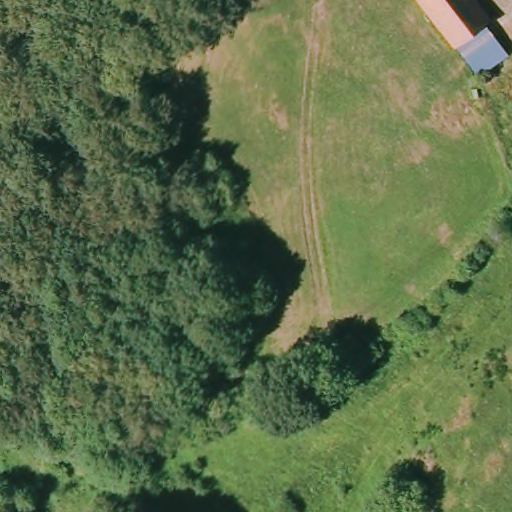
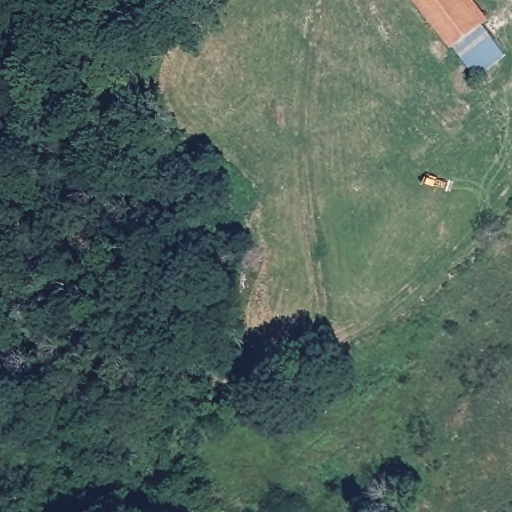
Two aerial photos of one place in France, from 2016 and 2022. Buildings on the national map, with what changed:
unchanged [(479,77),(419,0),(471,0),(487,21),(483,25),(507,55),(479,77)]

